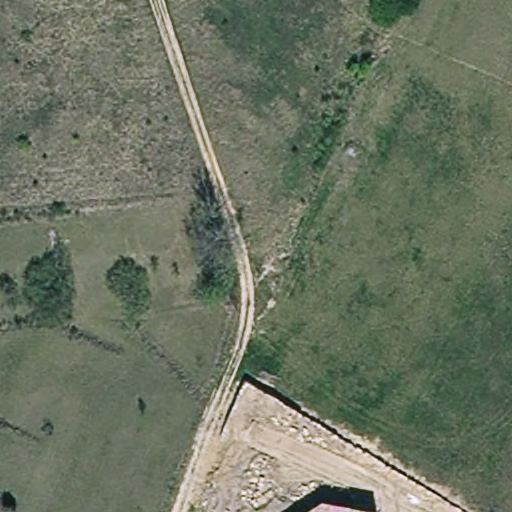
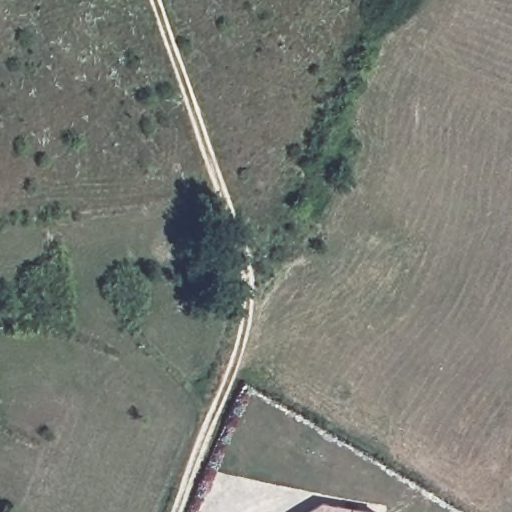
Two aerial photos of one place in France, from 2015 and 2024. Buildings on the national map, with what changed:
unchanged [(377,512),(306,512),(323,501),(378,511),(377,512)]

